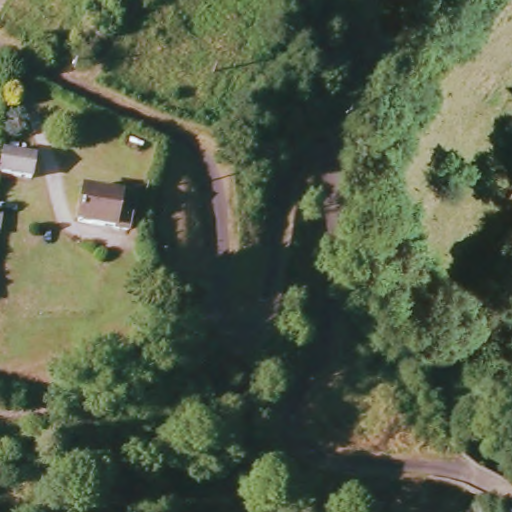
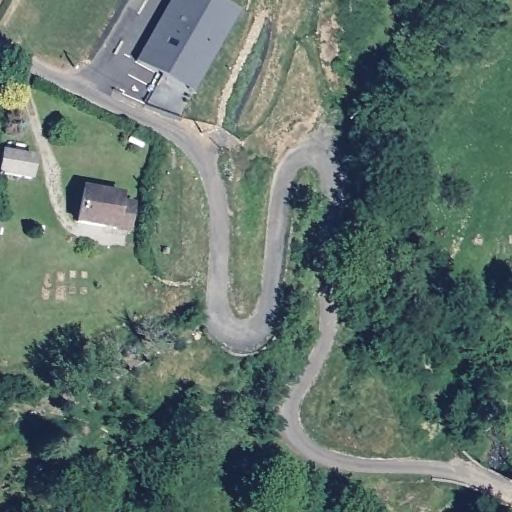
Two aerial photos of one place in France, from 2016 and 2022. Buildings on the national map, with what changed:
new [(171,0),(215,0),(239,12),(192,93),(136,62),(171,0)]
unchanged [(36,157),(32,179),(0,174),(0,170),(3,152),(36,157)]
unchanged [(85,189),(122,197),(120,202),(132,205),(129,231),(79,222),(85,189)]

